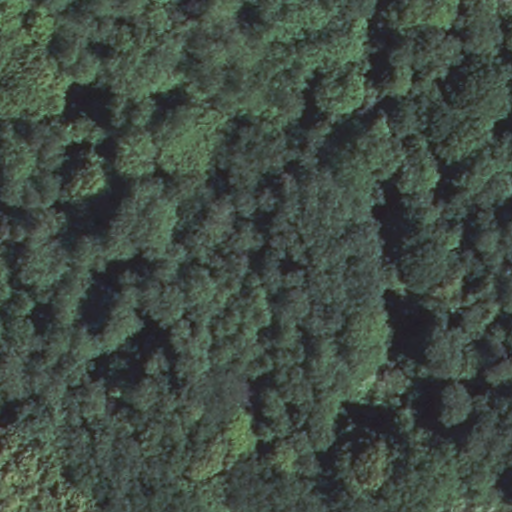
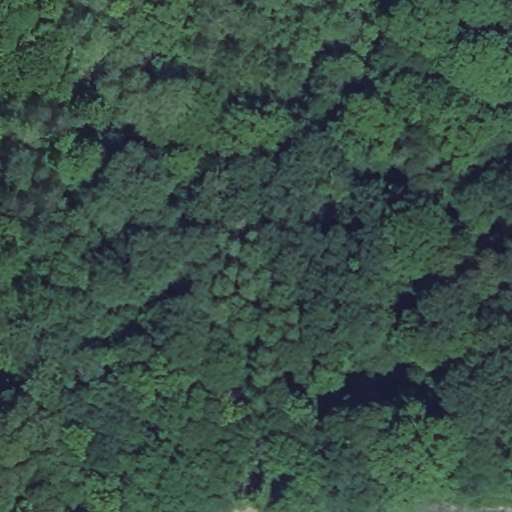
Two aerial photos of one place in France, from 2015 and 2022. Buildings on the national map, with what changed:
unchanged [(512,0),(512,12),(487,0),(512,0)]

